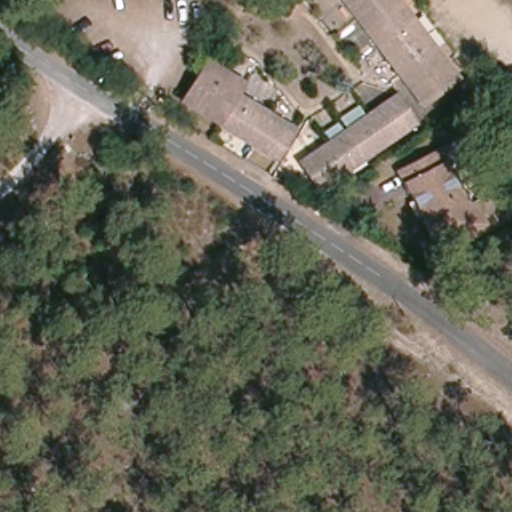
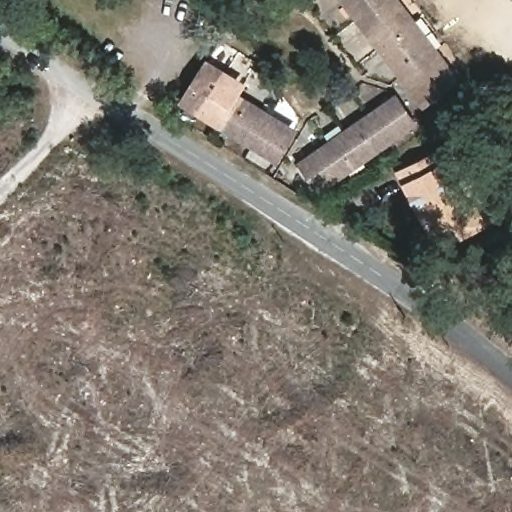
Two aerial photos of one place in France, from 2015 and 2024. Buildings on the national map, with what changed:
unchanged [(447,90),(426,107),(378,45),(347,0),(396,0),(412,24),(434,55),(455,85),(447,90)]
unchanged [(292,167),(198,110),(221,75),(257,96),(251,107),(308,140),(292,167)]
unchanged [(319,187),(301,167),(386,93),(405,116),(319,187)]
unchanged [(471,205),(484,224),(465,237),(458,227),(451,232),(458,243),(446,252),(398,180),(424,161),(442,147),(449,157),(435,169),(457,200),(471,205)]

